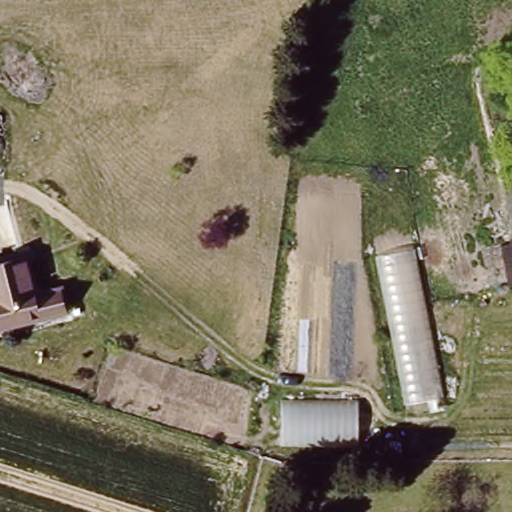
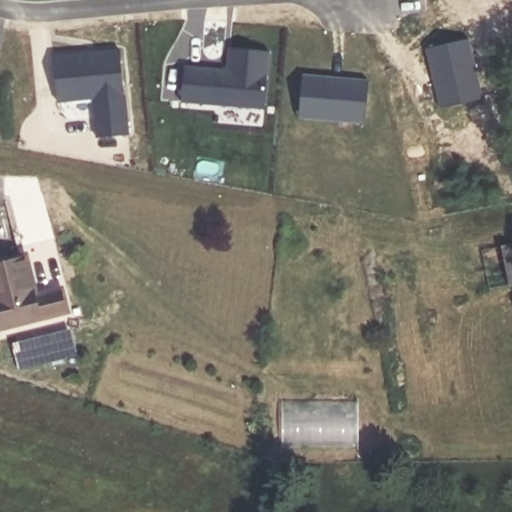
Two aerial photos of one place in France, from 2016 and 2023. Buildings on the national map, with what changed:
new [(468,38),(482,97),(441,107),(426,47),(468,38)]
new [(267,110),(183,102),(185,66),(231,70),(233,46),(273,51),(267,110)]
new [(132,135),(98,138),(95,100),(60,102),(55,55),(122,50),(132,135)]
new [(365,121),(300,116),(302,74),(328,76),(340,77),(368,80),(365,121)]
unchanged [(507,282),(498,244),(512,241),(512,281),(507,282)]
unchanged [(377,256),(413,250),(440,396),(405,405),(377,256)]
unchanged [(25,262),(35,302),(61,295),(66,316),(0,332),(0,269),(21,263),(25,262)]
unchanged [(358,405),(357,443),(282,441),(281,405),(358,405)]

